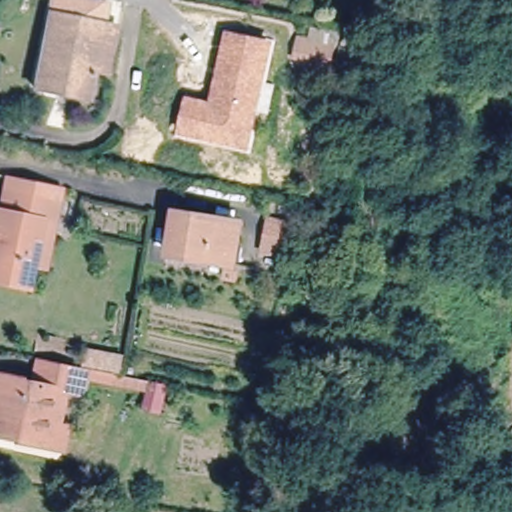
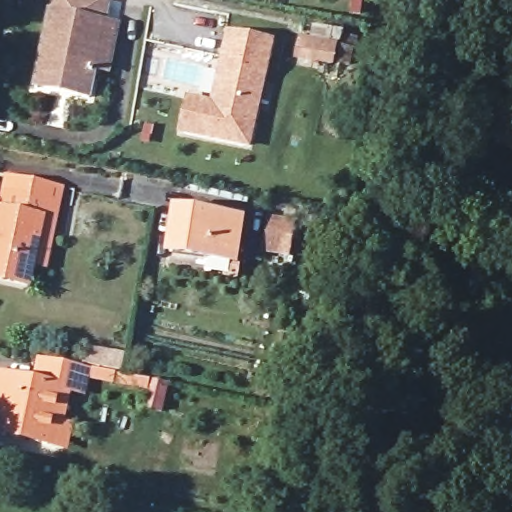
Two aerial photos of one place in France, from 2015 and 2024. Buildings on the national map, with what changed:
unchanged [(106,74),(90,71),(87,85),(58,79),(56,88),(32,83),(50,0),(97,0),(104,2),(100,20),(116,24),(106,74)]
unchanged [(272,42),(251,149),(176,133),(183,95),(211,101),(226,31),(272,42)]
unchanged [(300,34),(337,43),(335,64),(297,60),(300,34)]
unchanged [(19,281),(0,277),(0,178),(52,187),(48,204),(44,224),(35,270),(23,267),(19,281)]
unchanged [(172,212),(236,223),(229,263),(165,252),(172,212)]
unchanged [(285,240),(263,235),(266,222),(287,227),(285,240)]
unchanged [(59,454),(43,450),(0,440),(0,379),(32,386),(37,362),(84,371),(77,401),(64,398),(56,432),(64,434),(59,454)]

